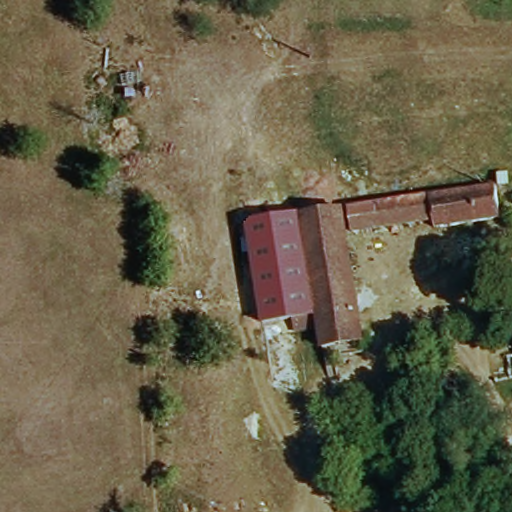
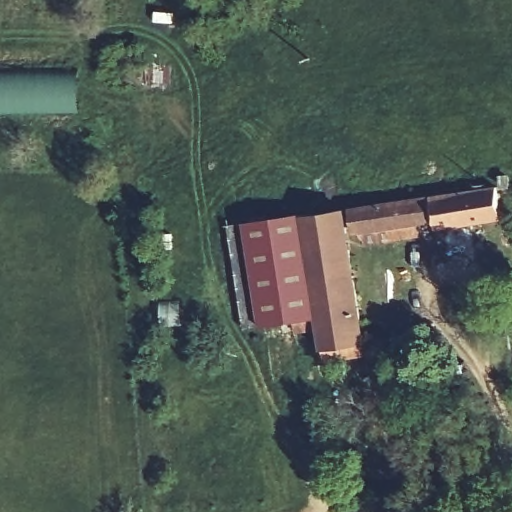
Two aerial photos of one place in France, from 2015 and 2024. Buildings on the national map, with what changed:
new [(78,70),(78,112),(0,113),(0,71),(78,70)]
unchanged [(435,227),(435,222),(353,232),(350,206),(496,186),(501,219),(435,227)]
unchanged [(321,329),(303,210),(343,205),(359,337),(363,337),(364,351),(360,351),(324,355),(321,329)]
unchanged [(248,222),(298,215),(301,237),(251,245),(248,222)]
unchanged [(296,323),(295,312),(261,317),(251,245),(301,237),(311,310),(313,321),(296,323)]

